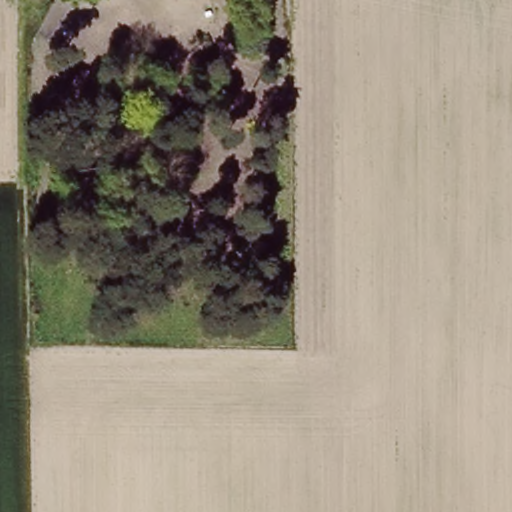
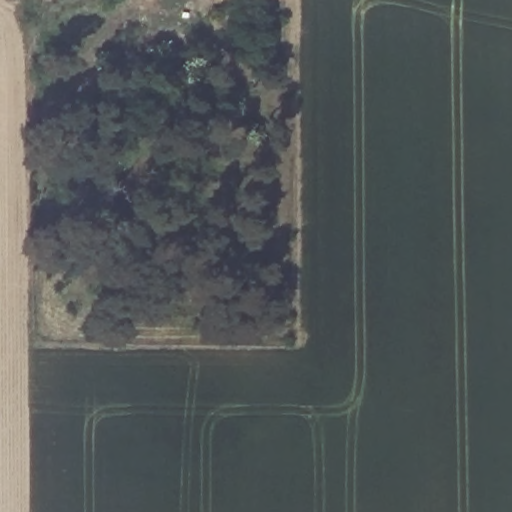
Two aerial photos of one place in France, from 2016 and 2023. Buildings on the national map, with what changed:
unchanged [(280,0),(280,1),(277,0),(280,0)]

